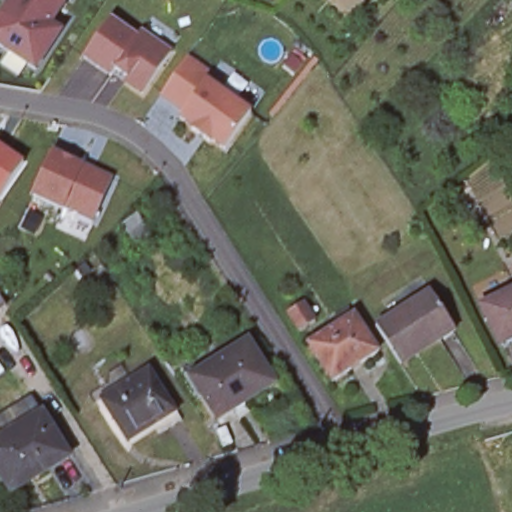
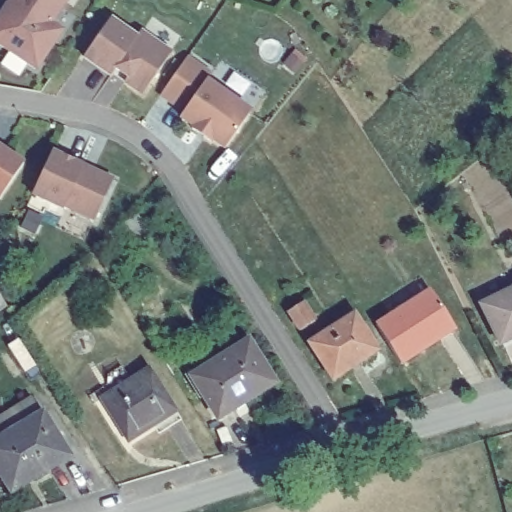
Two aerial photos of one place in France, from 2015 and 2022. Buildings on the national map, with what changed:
unchanged [(9,0),(69,0),(52,25),(64,33),(35,71),(0,50),(0,13),(9,0)]
unchanged [(112,78),(85,59),(110,21),(137,39),(141,33),(172,55),(144,96),(125,83),(114,75),(112,78)]
unchanged [(226,150),(212,141),(211,143),(192,130),(194,128),(180,119),(185,113),(161,97),(187,59),(212,76),(207,83),(252,113),(226,150)]
unchanged [(97,225),(31,199),(54,147),(115,179),(97,225)]
unchanged [(0,201),(0,148),(23,163),(0,201)]
unchanged [(142,226),(156,215),(164,224),(149,236),(142,226)]
unchanged [(481,308),(512,291),(512,340),(501,346),(481,308)]
unchanged [(377,327),(432,292),(454,326),(457,331),(402,366),(399,361),(377,327)]
unchanged [(7,306),(0,310),(0,295),(7,306)]
unchanged [(315,324),(300,333),(287,314),(302,305),(315,324)]
unchanged [(378,353),(332,383),(307,345),(354,316),(378,353)]
unchanged [(192,379),(199,375),(240,350),(250,344),(275,384),(264,391),(222,417),(219,419),(192,379)]
unchanged [(130,442),(101,399),(149,367),(178,410),(130,442)]
unchanged [(71,457),(47,472),(16,492),(0,467),(0,428),(7,439),(45,416),(71,457)]

